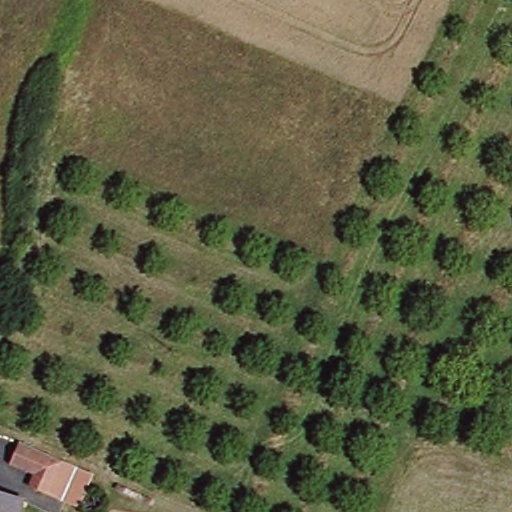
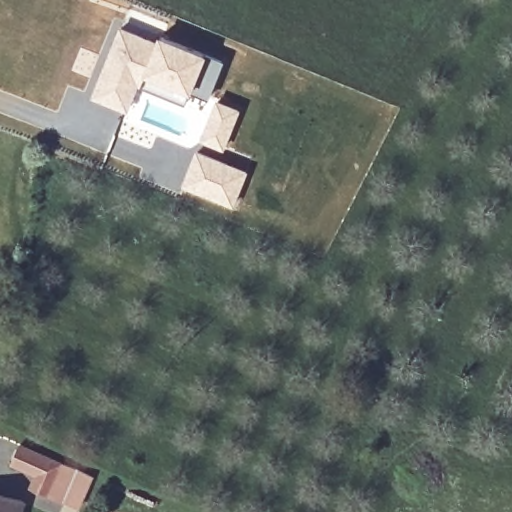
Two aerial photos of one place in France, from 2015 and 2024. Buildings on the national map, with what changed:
new [(93,97),(119,27),(159,40),(161,35),(207,53),(225,60),(209,99),(191,91),(186,103),(141,85),(127,111),(93,97)]
new [(216,100),(240,110),(224,148),(201,140),(216,100)]
new [(247,170),(234,205),(183,185),(197,150),(247,170)]
unchanged [(51,479),(28,468),(36,452),(75,471),(63,500),(46,492),(51,479)]
unchanged [(21,512),(0,512),(0,500),(22,505),(21,512)]

